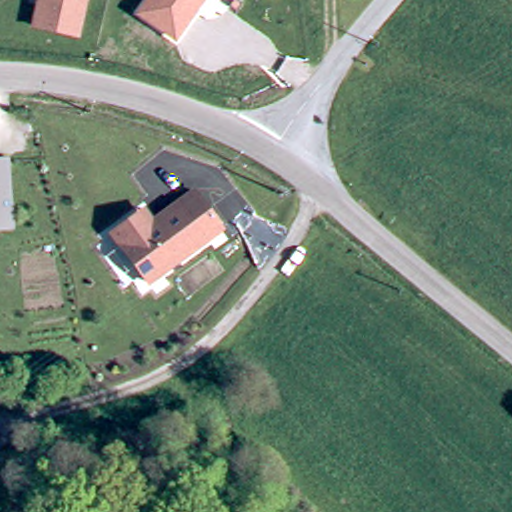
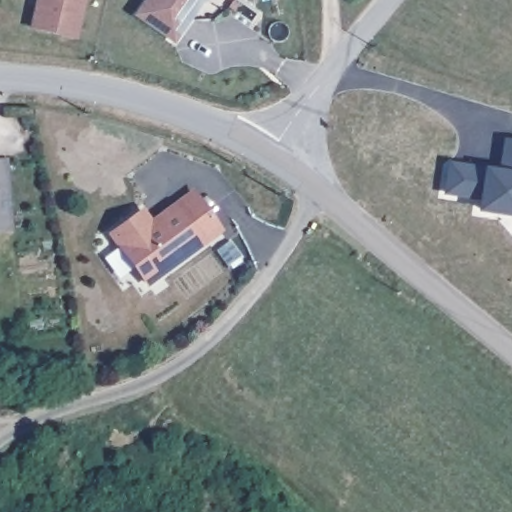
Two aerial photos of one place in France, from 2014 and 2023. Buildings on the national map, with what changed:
unchanged [(31,27),(37,0),(87,0),(79,36),(31,27)]
unchanged [(134,12),(143,0),(206,0),(175,43),(134,12)]
new [(481,209),(483,197),(447,192),(451,165),(488,171),(487,176),(501,178),(507,140),(512,141),(512,214),(500,212),(481,209)]
unchanged [(0,226),(0,160),(6,159),(10,212),(11,225),(0,226)]
unchanged [(221,229),(148,282),(112,233),(133,217),(143,210),(152,222),(195,191),(221,229)]

